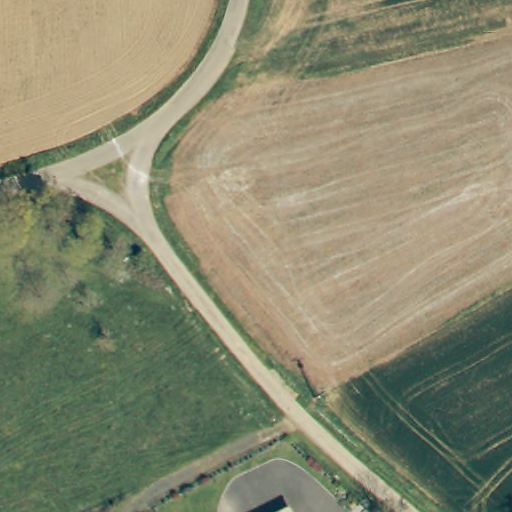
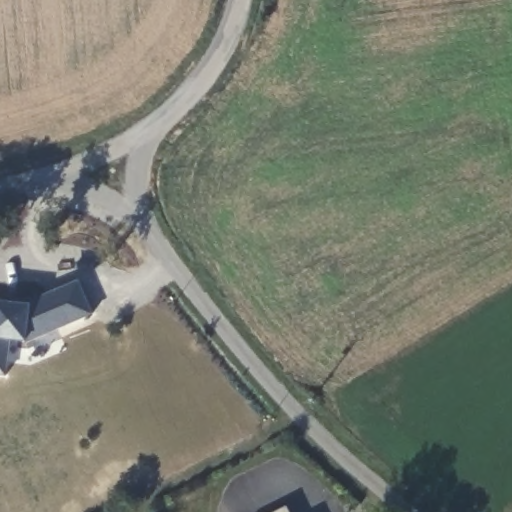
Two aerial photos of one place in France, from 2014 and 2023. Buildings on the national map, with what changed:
new [(75,280),(91,311),(27,342),(11,341),(7,377),(0,376),(0,305),(20,306),(75,280)]
unchanged [(298,512),(274,512),(293,502),(298,512)]

